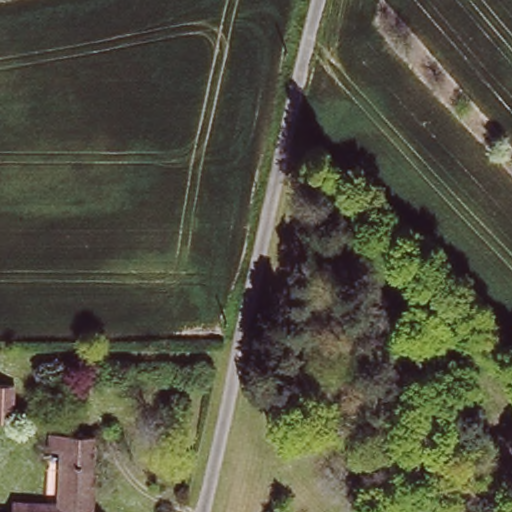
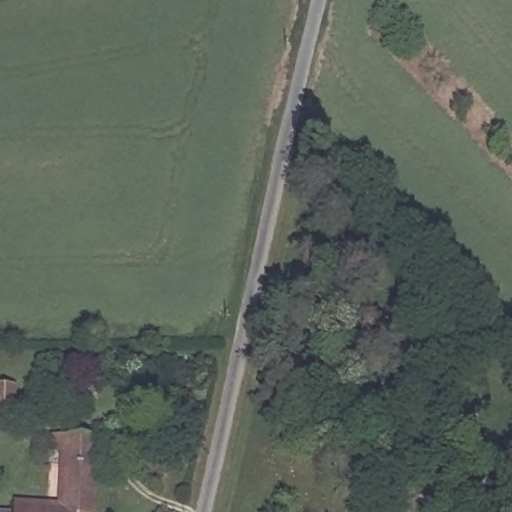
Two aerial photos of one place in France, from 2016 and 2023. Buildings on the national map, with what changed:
unchanged [(0,427),(0,381),(9,381),(9,414),(9,427),(0,427)]
unchanged [(39,503),(51,504),(53,456),(39,456),(40,437),(54,437),(89,439),(86,512),(11,512),(11,510),(11,502),(39,503)]

